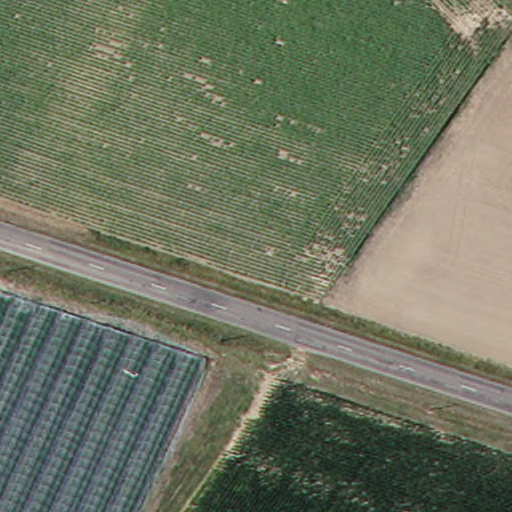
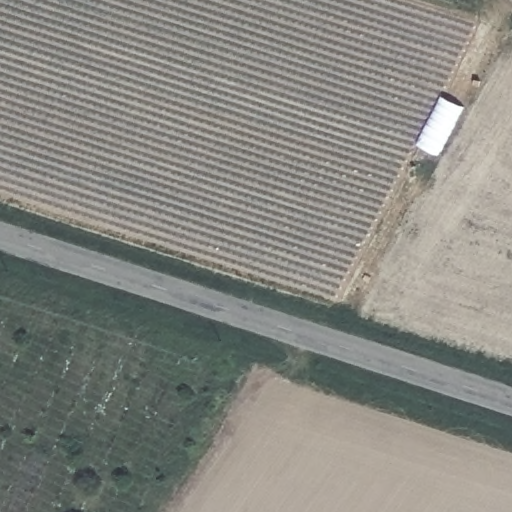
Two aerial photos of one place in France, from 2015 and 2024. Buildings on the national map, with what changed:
demolished [(211,356),(140,512),(0,512),(0,288),(211,356)]

